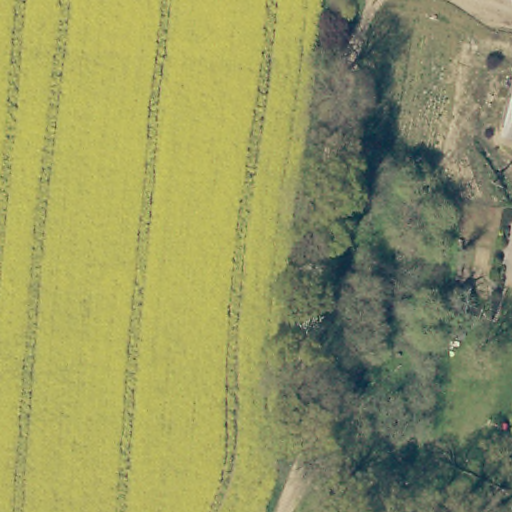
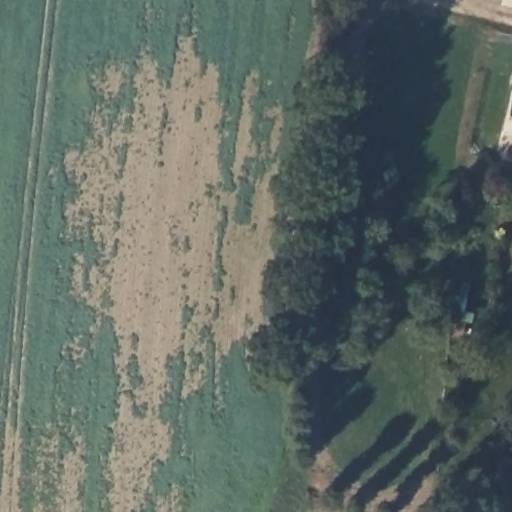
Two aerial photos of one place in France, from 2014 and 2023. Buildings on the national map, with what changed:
unchanged [(494,131),(509,75),(512,76),(512,135),(494,131)]

